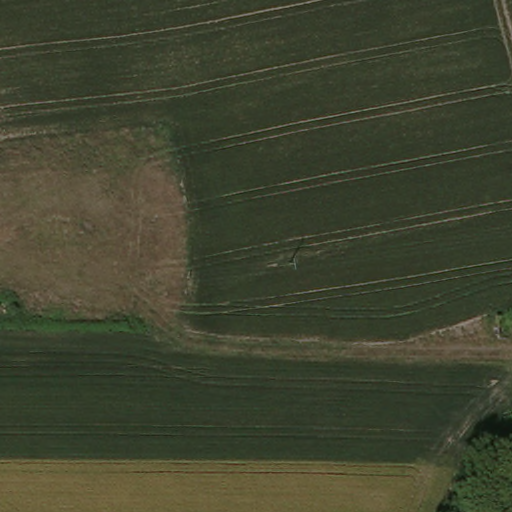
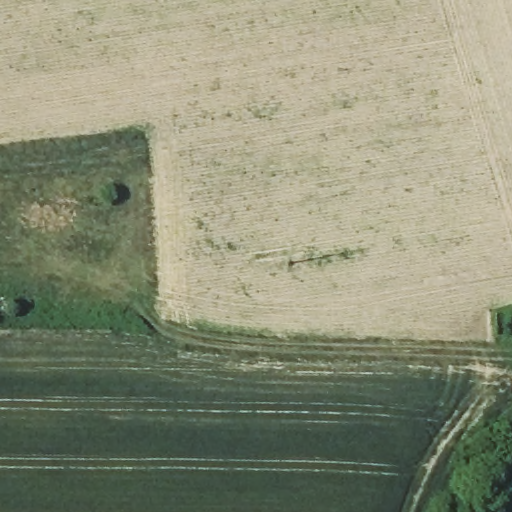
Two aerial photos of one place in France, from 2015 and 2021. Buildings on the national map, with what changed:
unchanged [(500,512),(512,481),(512,512),(500,512)]

